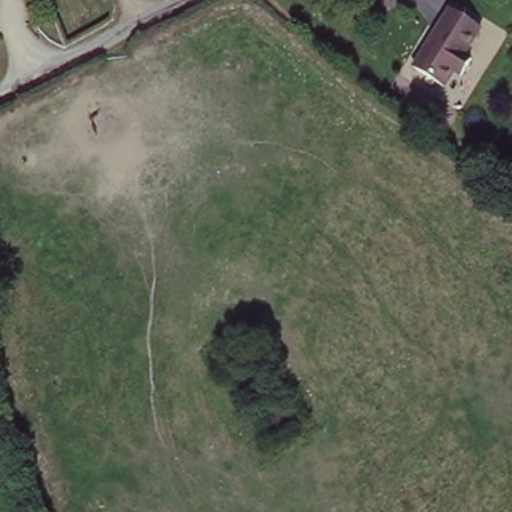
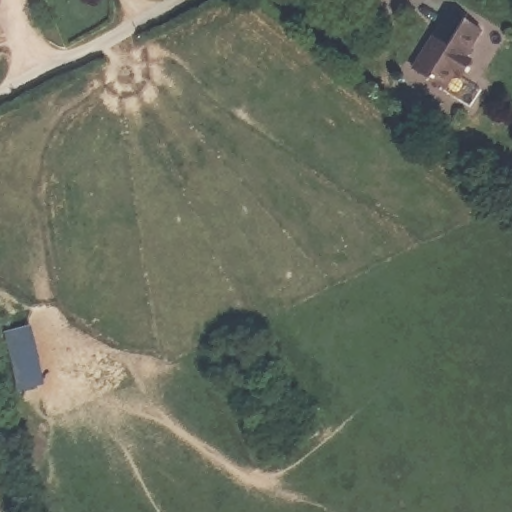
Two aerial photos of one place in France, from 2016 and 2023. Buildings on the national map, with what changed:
unchanged [(466,52),(475,56),(462,80),(453,76),(446,87),(408,70),(443,7),(480,27),(466,52)]
new [(33,325),(46,384),(14,389),(5,331),(33,325)]

